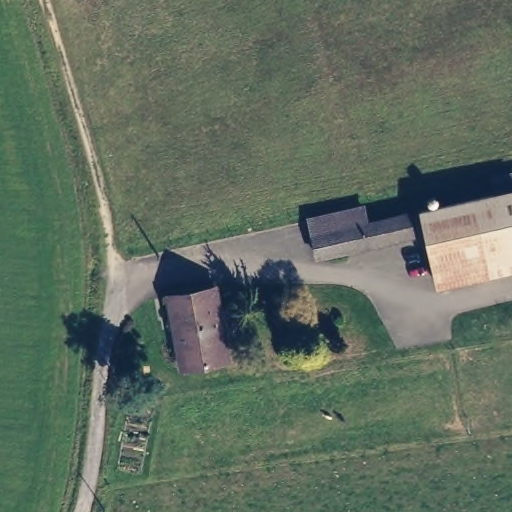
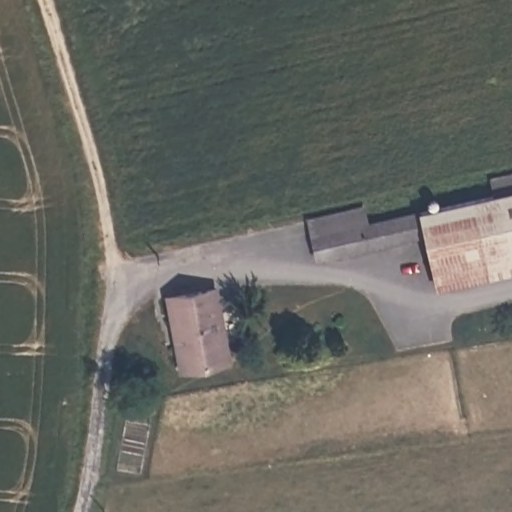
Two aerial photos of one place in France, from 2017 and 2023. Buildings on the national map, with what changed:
unchanged [(508,196),(511,206),(512,206),(512,257),(444,272),(437,237),(326,259),(320,237),(508,196)]
unchanged [(173,327),(168,302),(215,293),(229,363),(190,370),(182,372),(173,327)]

